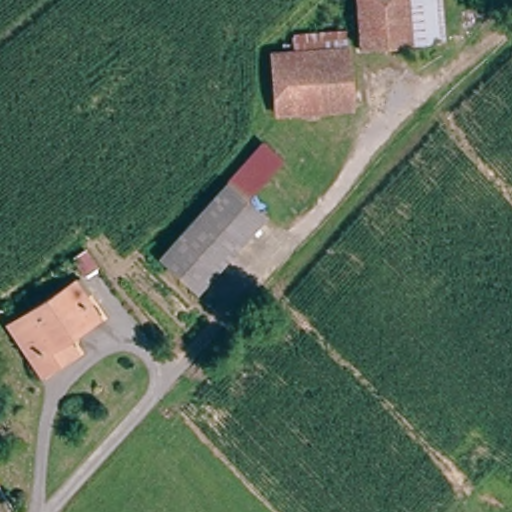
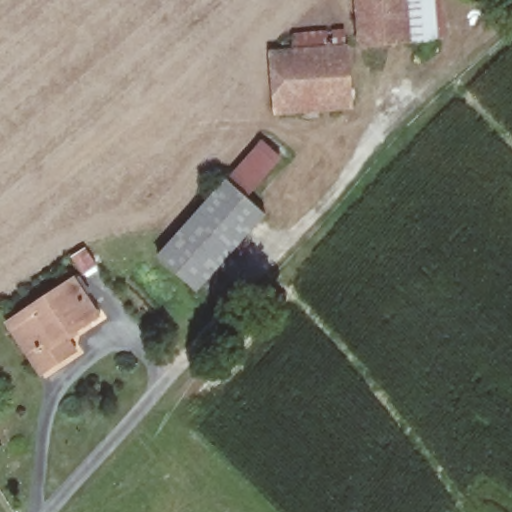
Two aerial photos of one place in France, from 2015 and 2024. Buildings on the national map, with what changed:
unchanged [(371,46),(366,0),(417,0),(420,25),(421,43),(371,46)]
unchanged [(269,52),(267,33),(340,30),(341,47),(269,52)]
unchanged [(341,47),(345,106),(274,110),(269,52),(341,47)]
unchanged [(244,200),(264,219),(194,293),(152,255),(250,151),(271,168),(244,200)]
unchanged [(81,246),(93,265),(79,273),(68,254),(81,246)]
unchanged [(61,338),(68,350),(35,372),(4,323),(69,281),(76,276),(84,287),(76,291),(92,316),(61,338)]

